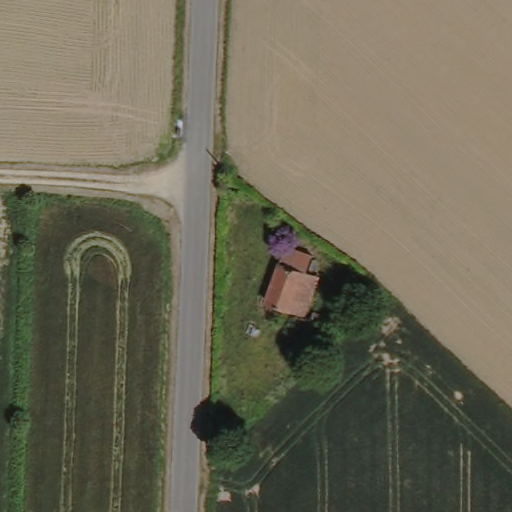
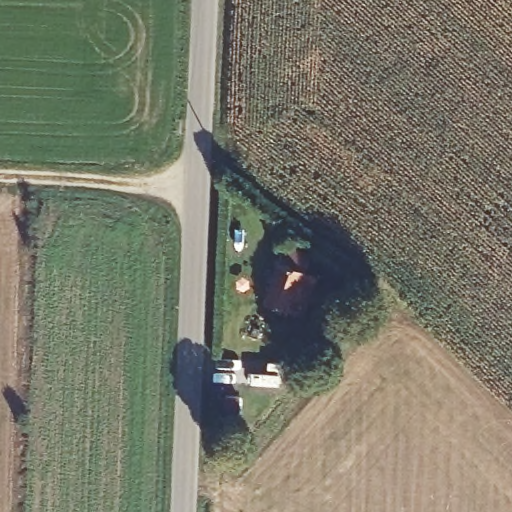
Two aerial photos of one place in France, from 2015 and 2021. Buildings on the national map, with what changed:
unchanged [(267,303),(281,265),(316,279),(302,315),(267,303)]

